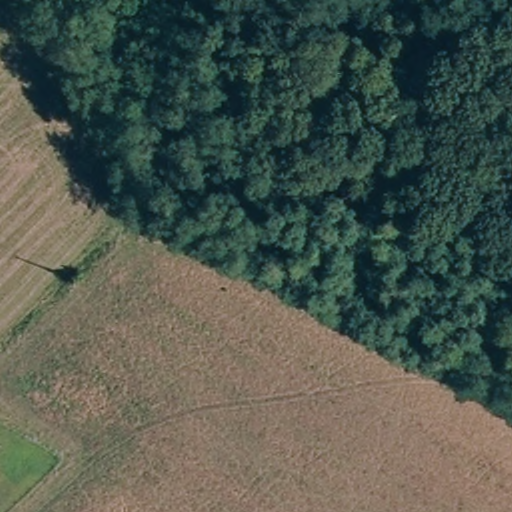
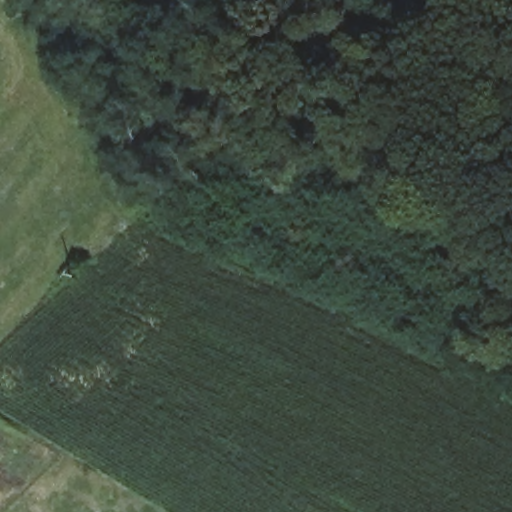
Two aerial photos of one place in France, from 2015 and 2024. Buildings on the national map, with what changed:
[]

